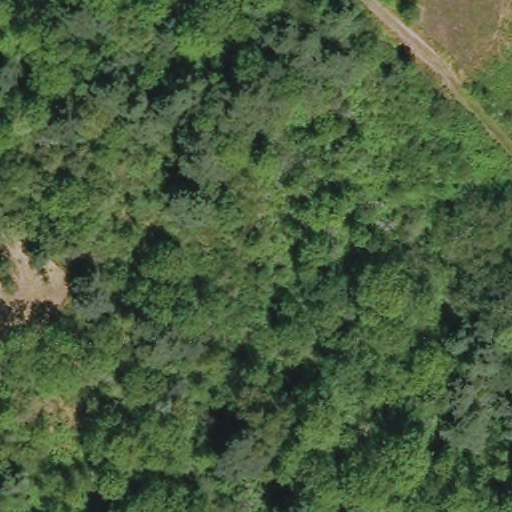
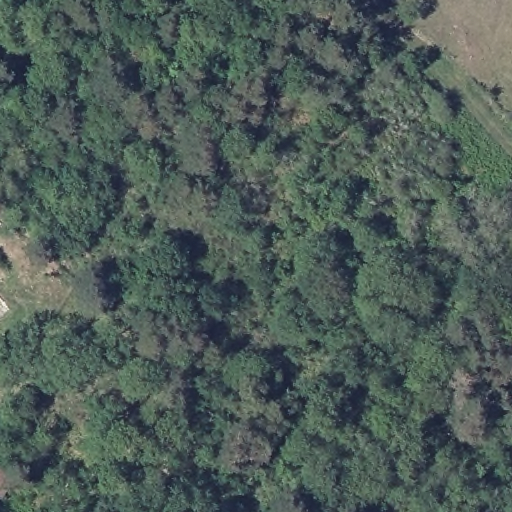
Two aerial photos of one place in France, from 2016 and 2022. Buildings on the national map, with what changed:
unchanged [(0,505),(0,473),(15,494),(0,505)]

